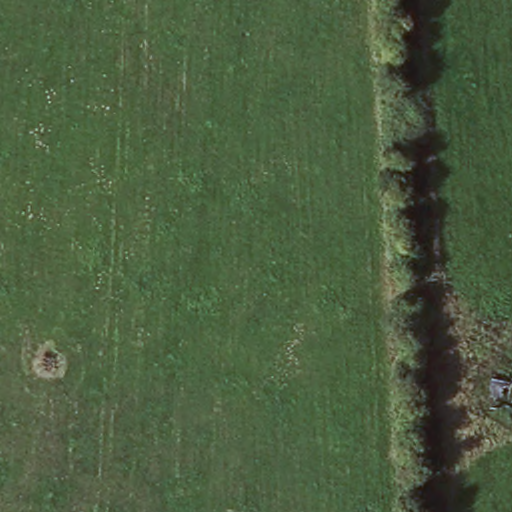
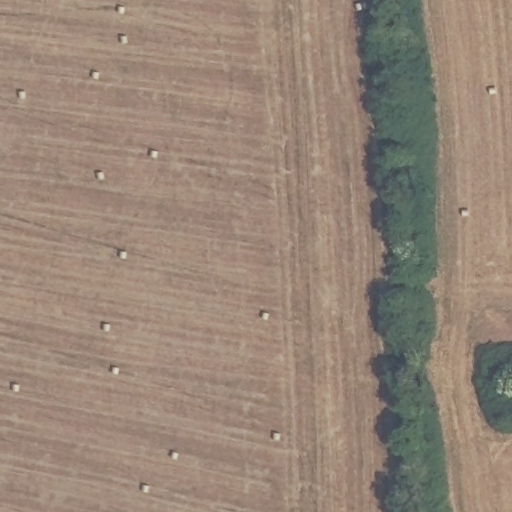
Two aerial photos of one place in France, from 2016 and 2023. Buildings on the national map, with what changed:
unchanged [(512,354),(512,396),(491,396),(492,355),(512,354)]

